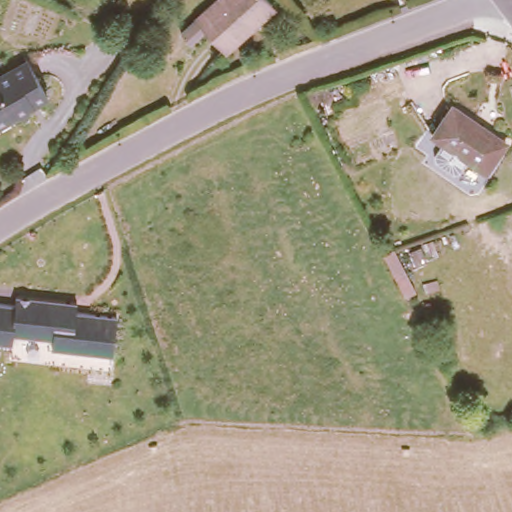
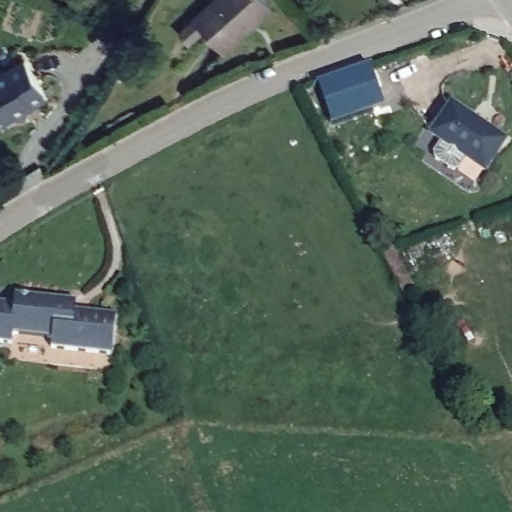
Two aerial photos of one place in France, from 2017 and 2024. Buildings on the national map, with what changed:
unchanged [(253,23),(225,50),(193,18),(212,0),(269,0),(273,4),(253,23)]
unchanged [(42,103),(28,107),(18,118),(8,114),(0,116),(0,71),(28,62),(42,103)]
new [(317,83),(371,65),(384,107),(331,126),(317,83)]
unchanged [(506,142),(483,172),(433,130),(456,101),(506,142)]
unchanged [(50,348),(52,338),(11,335),(10,343),(0,342),(0,303),(15,304),(16,295),(76,302),(76,312),(115,317),(111,355),(50,348)]

